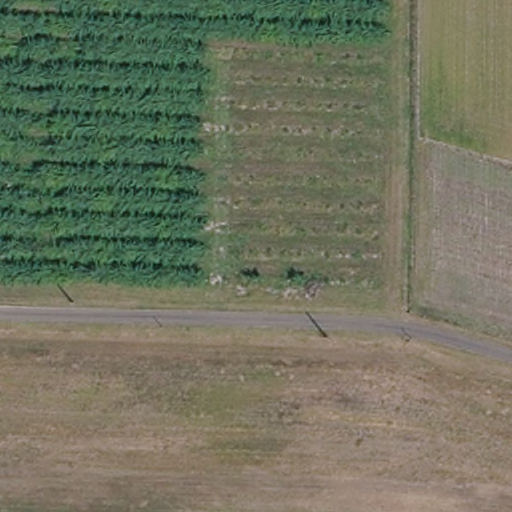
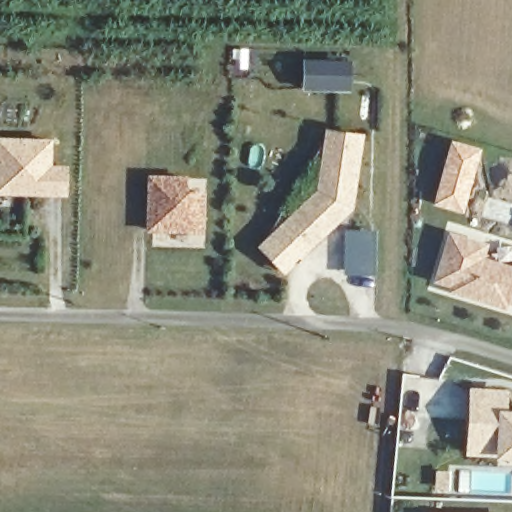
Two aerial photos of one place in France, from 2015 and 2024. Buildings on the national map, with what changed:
new [(229,47),(251,48),(249,72),(238,72),(238,74),(227,74),(229,47)]
new [(301,57),(352,59),(351,91),(300,90),(301,57)]
new [(258,245),(317,190),(325,128),(363,132),(354,209),(284,273),(258,245)]
new [(68,165),(67,197),(0,195),(0,138),(54,138),(53,165),(68,165)]
new [(204,234),(146,232),(147,174),(188,176),(188,191),(204,191),(204,234)]
new [(506,311),(447,292),(449,287),(433,282),(449,231),(490,242),(486,257),(512,265),(512,306),(508,305),(506,311)]
new [(495,456),(465,456),(468,387),(508,390),(507,410),(512,410),(512,460),(495,460),(495,456)]

